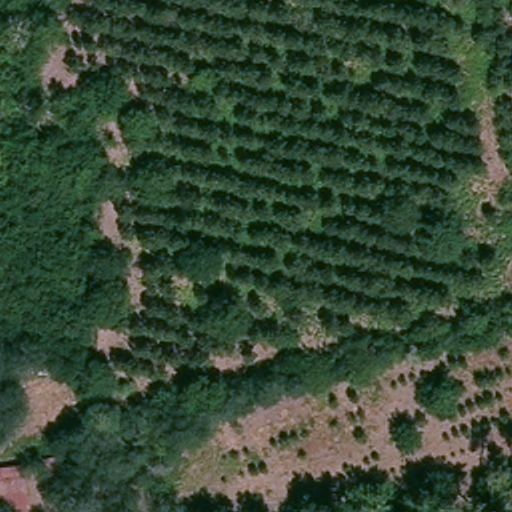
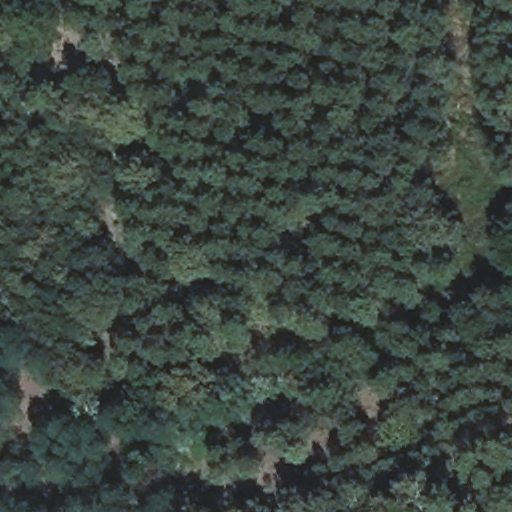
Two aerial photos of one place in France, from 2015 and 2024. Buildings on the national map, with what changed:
unchanged [(64,495),(44,502),(38,474),(58,469),(64,495)]
unchanged [(27,501),(0,509),(0,477),(20,471),(27,501)]

